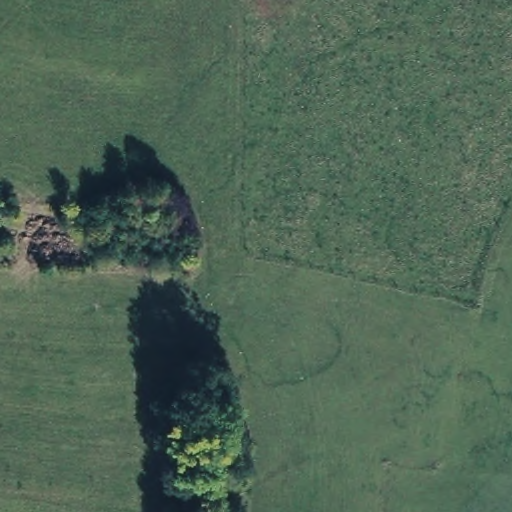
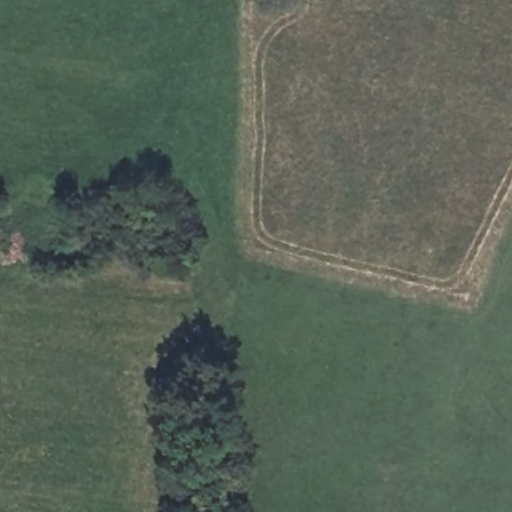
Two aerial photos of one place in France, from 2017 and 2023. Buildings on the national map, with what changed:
[]

